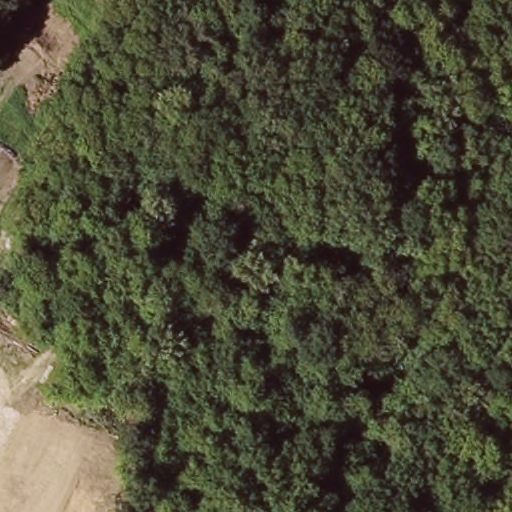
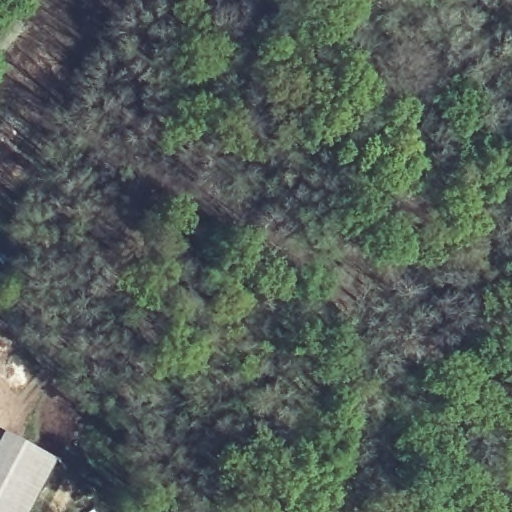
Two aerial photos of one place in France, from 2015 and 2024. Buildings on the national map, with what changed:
new [(28,512),(0,512),(0,437),(2,433),(55,461),(28,512)]

